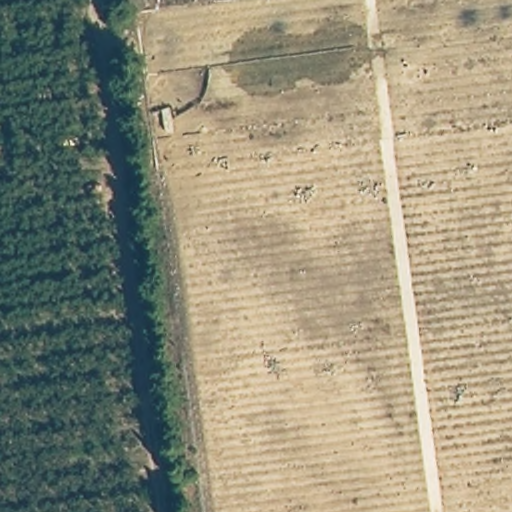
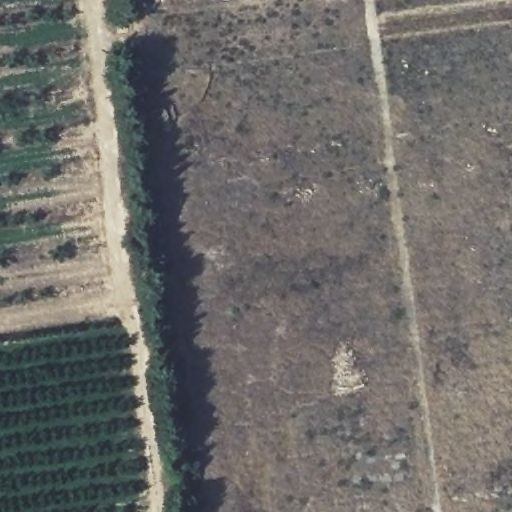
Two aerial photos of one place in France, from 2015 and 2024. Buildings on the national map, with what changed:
unchanged [(124,10),(124,0),(147,0),(147,9),(124,10)]

